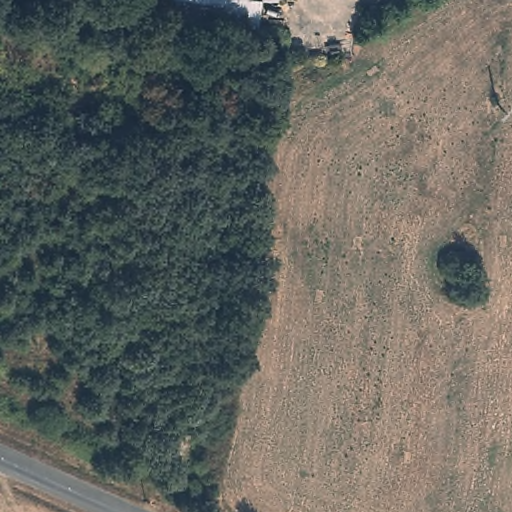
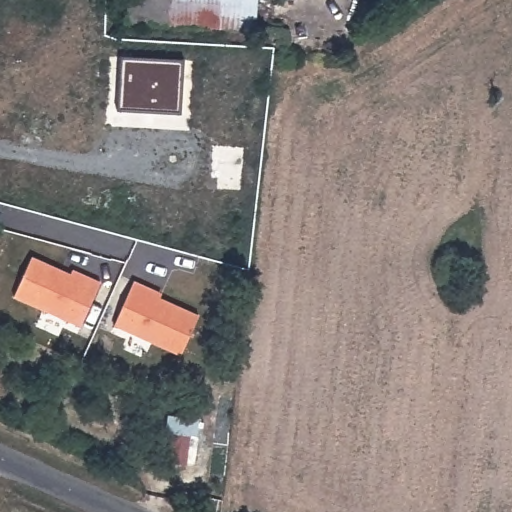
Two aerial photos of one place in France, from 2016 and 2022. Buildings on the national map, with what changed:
unchanged [(241,29),(128,19),(130,0),(244,0),(241,29)]
new [(120,57),(184,61),(182,115),(118,112),(120,57)]
new [(31,256),(71,273),(74,270),(100,282),(80,327),(14,298),(31,256)]
new [(133,282),(161,294),(160,298),(199,315),(180,356),(114,325),(133,282)]
unchanged [(173,438),(190,440),(189,468),(169,466),(173,438)]

